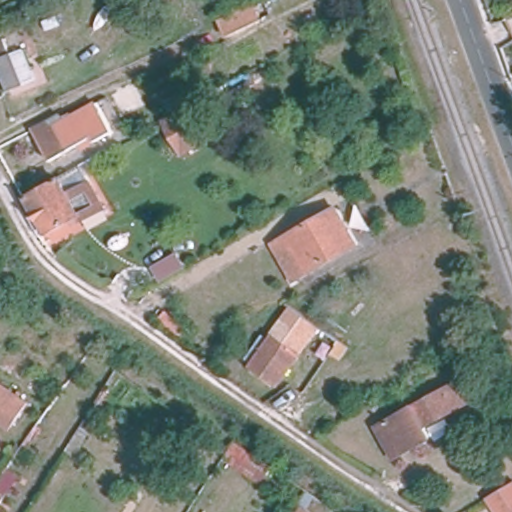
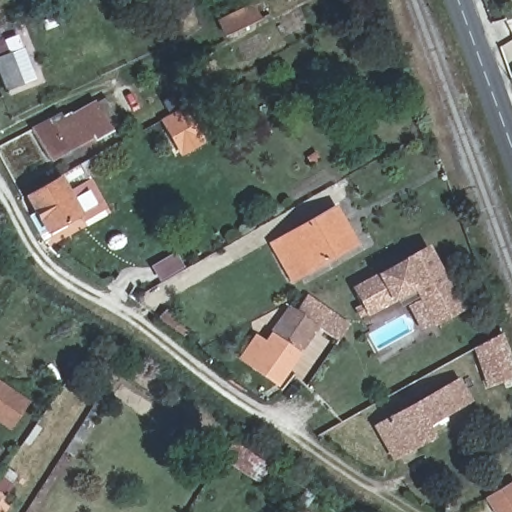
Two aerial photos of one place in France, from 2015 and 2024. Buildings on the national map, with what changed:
unchanged [(251,2),(252,5),(260,0),(267,15),(222,38),(213,22),(251,2)]
unchanged [(5,57),(19,52),(31,81),(3,92),(0,85),(0,47),(5,57)]
unchanged [(111,131),(95,139),(92,135),(49,159),(32,129),(59,114),(62,120),(95,102),(111,131)]
unchanged [(202,139),(181,151),(162,117),(184,106),(202,139)]
unchanged [(322,162),(313,168),(307,158),(315,152),(322,162)]
unchanged [(81,165),(115,219),(90,234),(82,216),(60,180),(81,165)]
unchanged [(26,197),(56,181),(76,217),(39,237),(28,217),(34,214),(26,197)]
unchanged [(292,240),(289,234),(335,208),(355,244),(292,280),(276,250),(292,240)]
new [(381,275),(431,247),(466,311),(423,330),(405,299),(371,315),(357,286),(381,275)]
unchanged [(292,309),(317,326),(300,350),(278,336),(275,333),(292,309)]
unchanged [(301,356),(277,387),(249,367),(272,337),(301,356)]
new [(472,348),(501,338),(512,372),(512,375),(485,384),(472,348)]
unchanged [(377,427),(460,382),(471,402),(426,426),(432,437),(393,457),(377,427)]
unchanged [(26,402),(9,426),(0,420),(0,384),(26,402)]
unchanged [(512,485),(512,512),(491,512),(482,498),(510,482),(512,485)]

